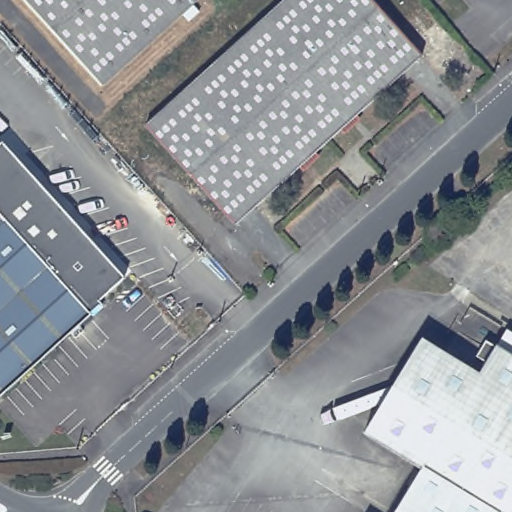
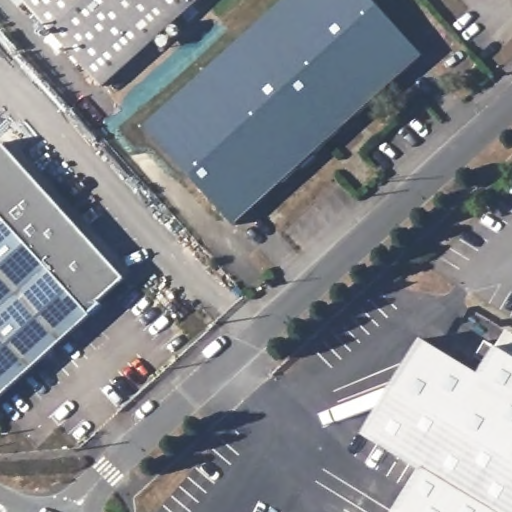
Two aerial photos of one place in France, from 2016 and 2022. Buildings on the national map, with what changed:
unchanged [(23,0),(195,0),(100,86),(23,0)]
unchanged [(371,0),(422,55),(327,140),(232,225),(144,127),(238,43),(286,0),(371,0)]
unchanged [(0,135),(127,274),(0,390),(0,135)]
unchanged [(449,291),(443,301),(430,293),(436,283),(449,291)]
unchanged [(426,477),(368,440),(428,345),(485,380),(492,370),(481,363),(491,347),(501,353),(512,360),(512,512),(405,512),(426,477)]

